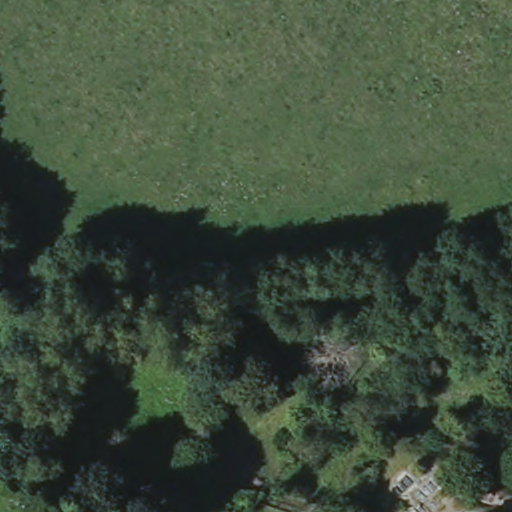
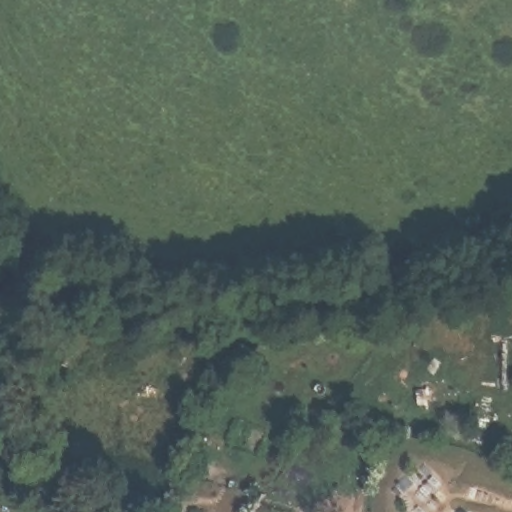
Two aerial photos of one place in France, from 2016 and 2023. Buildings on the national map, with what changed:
unchanged [(52,511),(53,512),(51,512),(52,511)]

